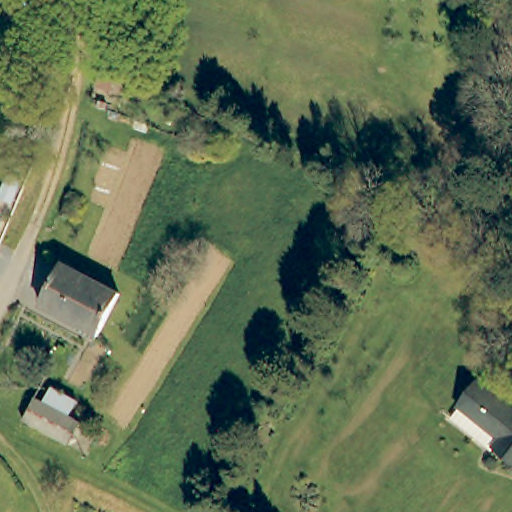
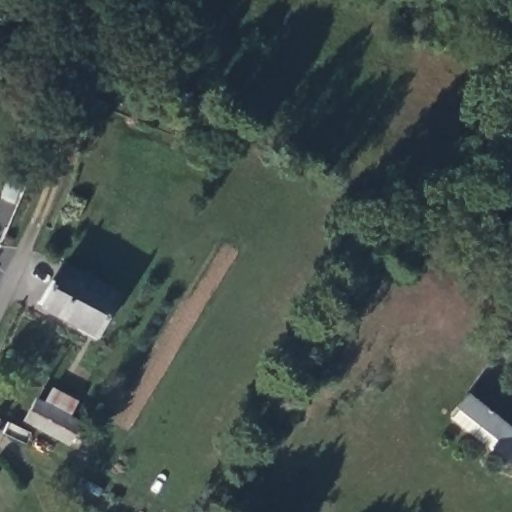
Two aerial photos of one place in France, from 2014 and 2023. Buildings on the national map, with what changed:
unchanged [(99,337),(43,305),(65,267),(68,268),(120,298),(99,337)]
unchanged [(512,407),(512,466),(491,450),(498,441),(458,410),(481,383),(512,407)]
unchanged [(79,420),(66,446),(21,424),(34,397),(79,420)]

